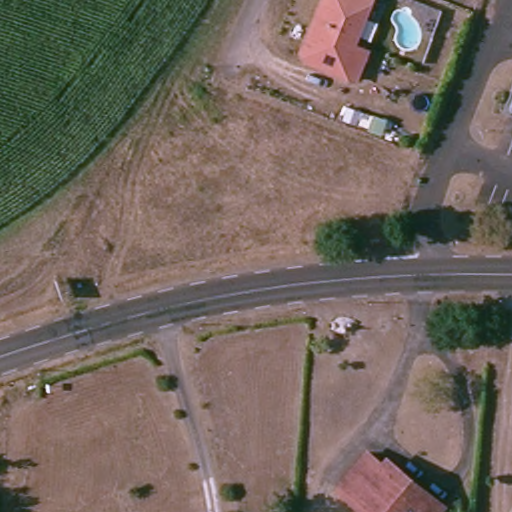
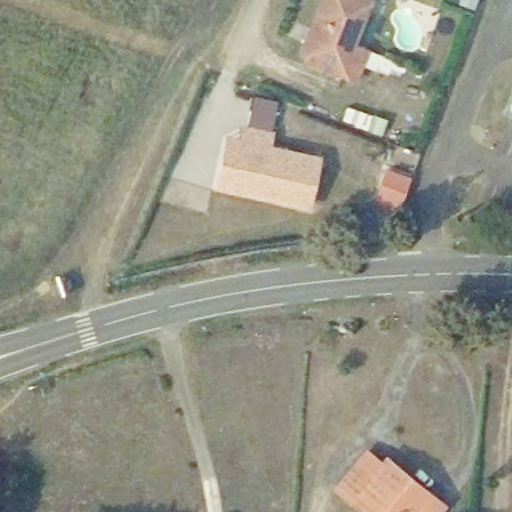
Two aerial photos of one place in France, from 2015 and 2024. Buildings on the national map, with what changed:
unchanged [(300,60),(323,0),(369,0),(371,1),(353,47),(367,55),(356,84),(340,77),(323,70),(300,60)]
new [(278,101),(271,129),(275,130),(271,144),(320,155),(309,209),(214,189),(226,134),(240,137),(243,124),(247,125),(254,96),(278,101)]
unchanged [(435,512),(364,512),(335,489),(363,454),(378,465),(388,454),(444,502),(435,512)]

